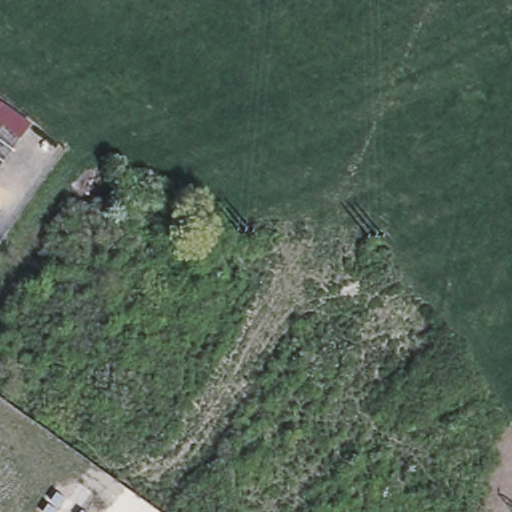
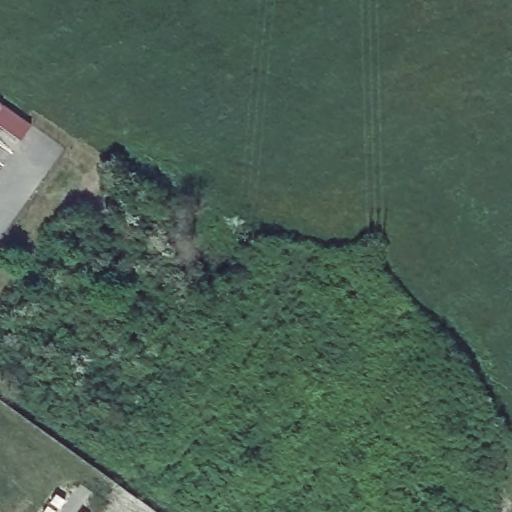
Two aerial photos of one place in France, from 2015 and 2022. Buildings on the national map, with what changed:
unchanged [(14,145),(0,164),(0,133),(14,145)]

